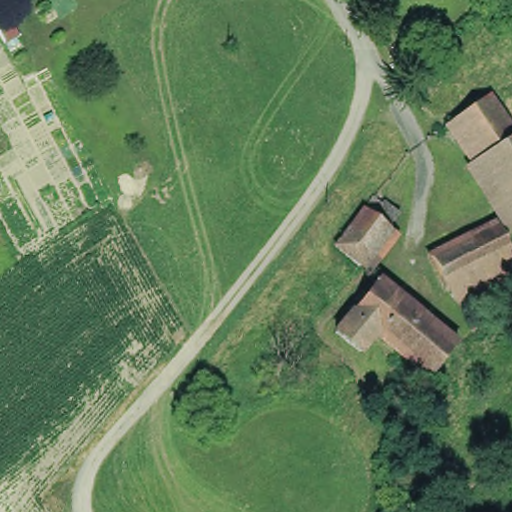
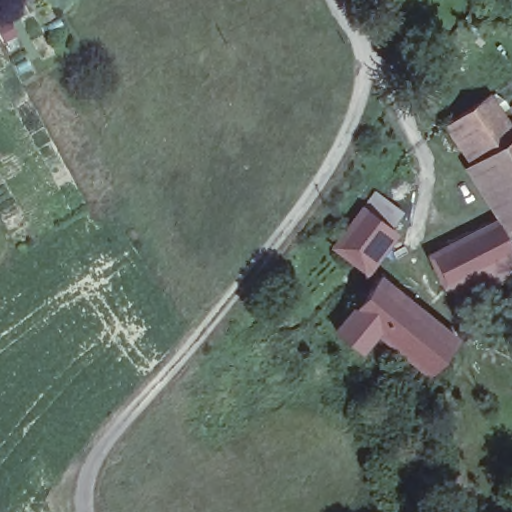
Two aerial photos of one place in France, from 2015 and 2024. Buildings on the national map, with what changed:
unchanged [(443,124),(482,100),(508,139),(470,164),(443,124)]
unchanged [(511,227),(490,196),(470,164),(508,139),(512,137),(512,229),(511,227)]
unchanged [(365,265),(341,246),(370,209),(395,228),(365,265)]
unchanged [(423,260),(489,226),(503,256),(439,287),(435,280),(423,260)]
unchanged [(512,274),(512,276),(453,305),(446,297),(439,287),(503,256),(512,274)]
unchanged [(395,356),(401,347),(383,333),(368,352),(342,331),(365,302),(360,298),(366,290),(372,294),(385,278),(463,340),(437,374),(412,356),(406,365),(395,356)]

